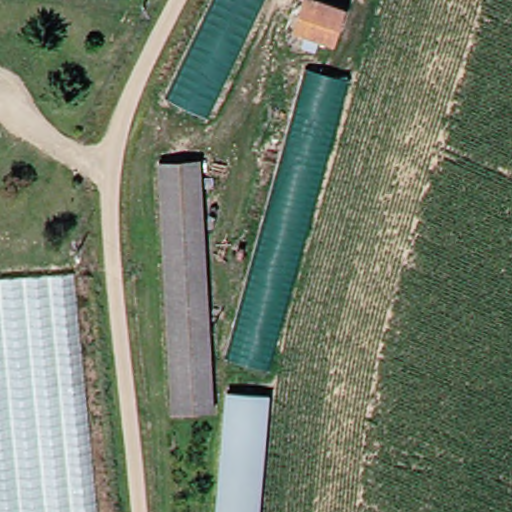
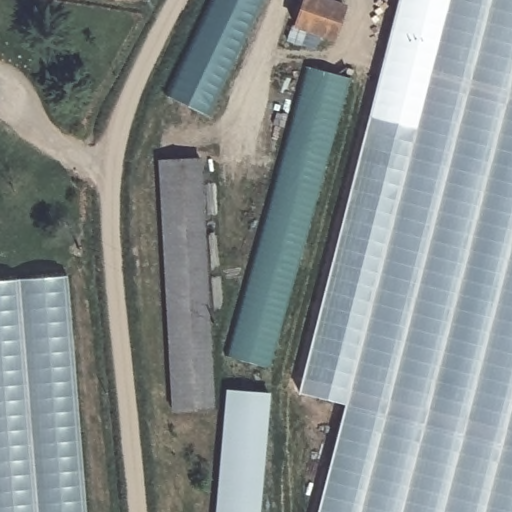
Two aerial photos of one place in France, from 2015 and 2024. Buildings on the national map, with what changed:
new [(209,118),(166,96),(212,0),(263,0),(209,118)]
unchanged [(300,0),(333,0),(343,3),(331,33),(295,22),(300,0)]
new [(449,0),(512,0),(512,512),(316,512),(415,128),(449,0)]
new [(367,116),(398,0),(449,0),(415,128),(367,116)]
unchanged [(227,356),(307,60),(348,73),(269,366),(227,356)]
new [(367,116),(415,128),(345,403),(298,391),(367,116)]
unchanged [(159,159),(204,157),(208,260),(214,402),(168,404),(162,257),(159,159)]
unchanged [(92,512),(0,512),(0,272),(65,264),(92,512)]
unchanged [(271,390),(260,512),(215,512),(225,386),(271,390)]

